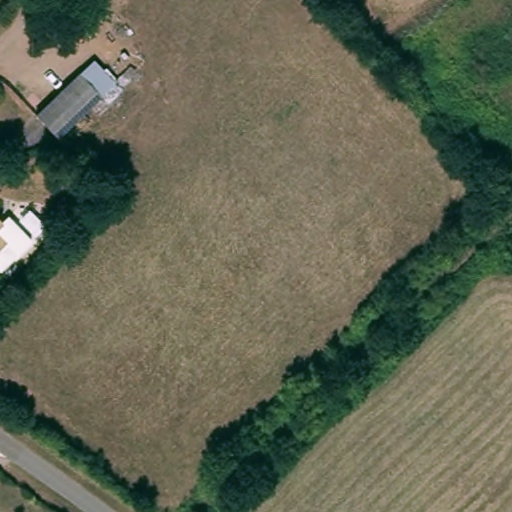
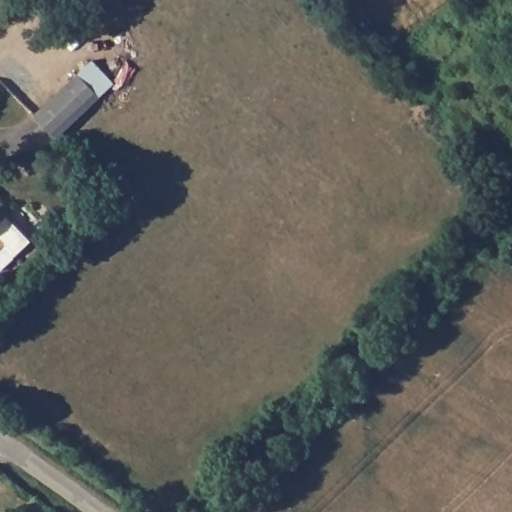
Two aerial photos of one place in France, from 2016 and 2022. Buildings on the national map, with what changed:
unchanged [(109,85),(66,126),(45,104),(88,62),(109,85)]
unchanged [(0,243),(11,255),(0,264),(0,243)]

